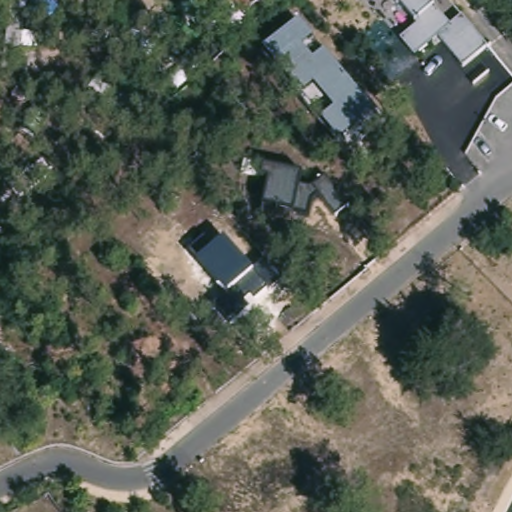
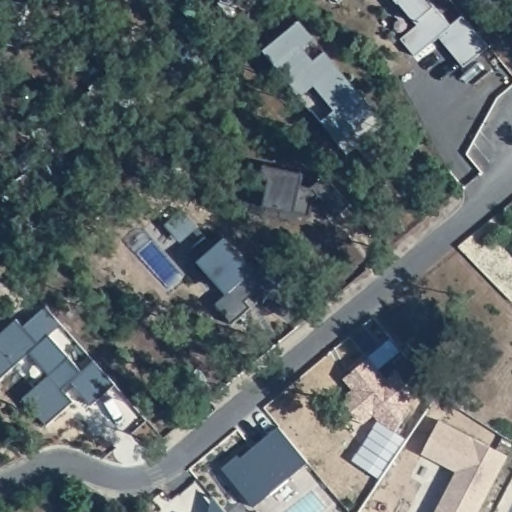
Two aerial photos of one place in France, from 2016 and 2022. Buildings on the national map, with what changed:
unchanged [(451,25),(462,17),(485,46),(461,65),(437,36),(415,56),(400,39),(416,25),(395,0),(428,0),(434,7),(451,25)]
unchanged [(339,143),(321,121),(332,110),(313,87),(300,97),(263,51),(299,21),(314,39),(303,48),(313,61),(325,51),(376,112),(339,143)]
unchanged [(299,187),(312,189),(327,178),(348,205),(333,217),(318,197),(311,202),(308,214),(293,212),(263,207),(269,178),(261,176),(264,165),(301,173),(299,187)]
unchanged [(224,239),(252,272),(264,262),(281,281),(255,302),(250,297),(244,302),(249,308),(227,324),(211,304),(225,294),(196,262),(224,239)]
new [(13,321),(20,328),(44,307),(60,324),(46,336),(81,372),(92,361),(113,383),(90,404),(70,382),(62,389),(72,402),(46,424),(23,398),(48,375),(29,352),(0,377),(0,333),(13,321)]
new [(401,352),(390,361),(378,371),(366,356),(378,346),(389,337),(401,352)]
new [(410,409),(395,432),(377,420),(368,410),(357,419),(345,406),(346,394),(352,390),(346,383),(342,379),(351,373),(367,359),(365,357),(366,356),(386,380),(397,370),(418,395),(407,405),(410,409)]
new [(368,410),(373,415),(361,425),(357,419),(368,410)]
new [(379,482),(349,462),(377,420),(407,440),(379,482)]
new [(438,420),(507,456),(477,512),(434,512),(456,472),(421,454),(438,420)]
new [(239,459),(252,449),(264,439),(278,428),(307,464),(253,509),(221,469),(237,457),(239,459)]
new [(211,497),(212,497),(225,512),(208,512),(211,497)]

